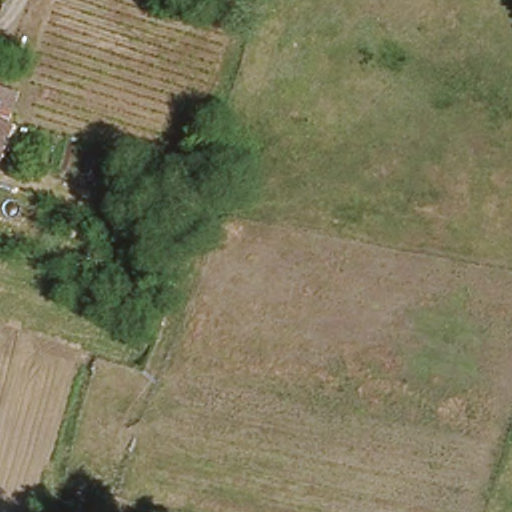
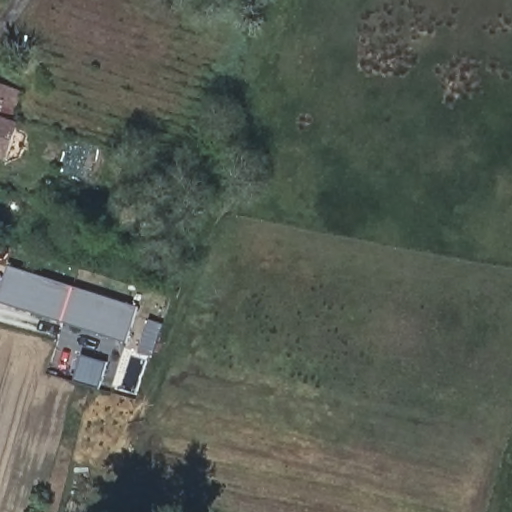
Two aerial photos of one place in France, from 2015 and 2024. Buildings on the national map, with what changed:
unchanged [(16,88),(5,119),(12,120),(0,153),(0,81),(6,83),(16,88)]
new [(0,302),(0,294),(9,267),(136,308),(125,342),(0,302)]
new [(81,356),(105,362),(99,387),(75,382),(81,356)]

